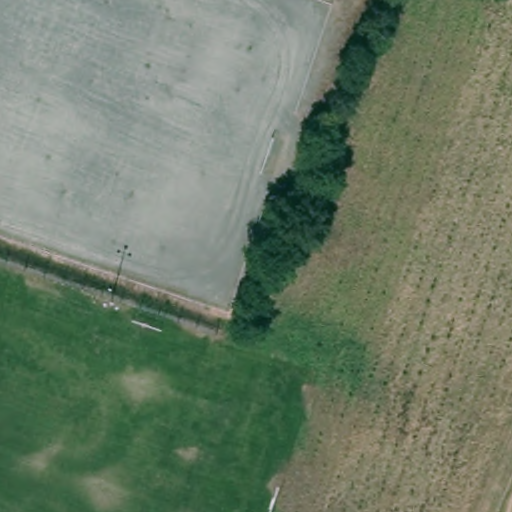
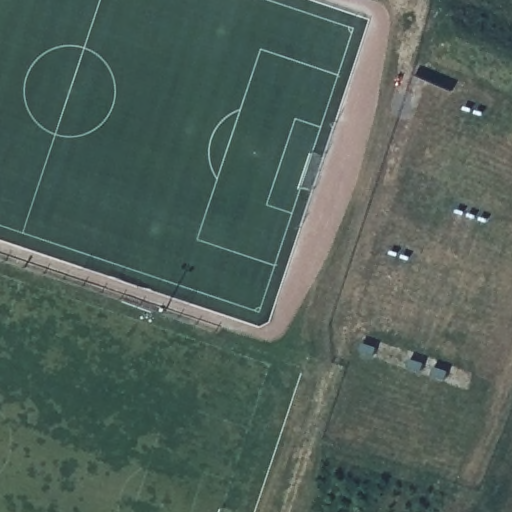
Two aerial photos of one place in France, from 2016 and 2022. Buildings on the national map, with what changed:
[]

